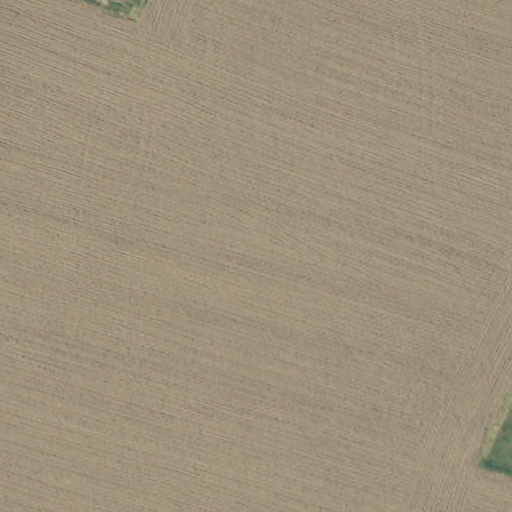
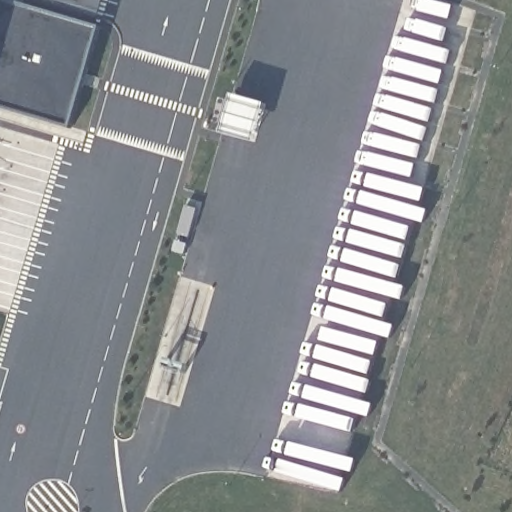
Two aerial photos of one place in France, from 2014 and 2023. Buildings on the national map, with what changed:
new [(0,0),(5,0),(99,26),(69,127),(0,107),(0,0)]

